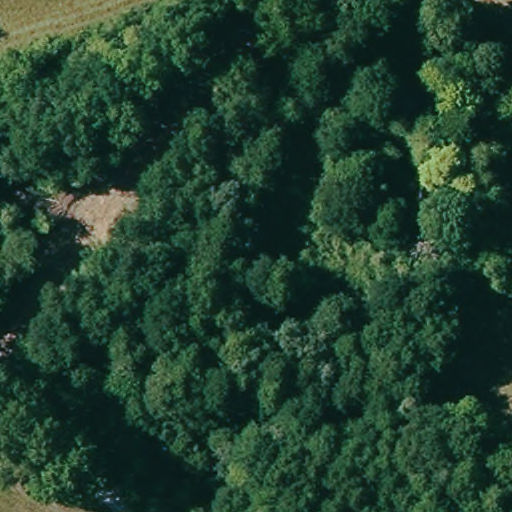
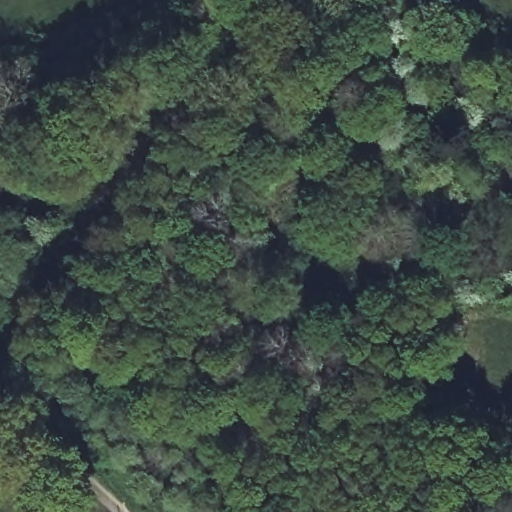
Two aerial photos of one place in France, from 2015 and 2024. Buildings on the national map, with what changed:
[]

